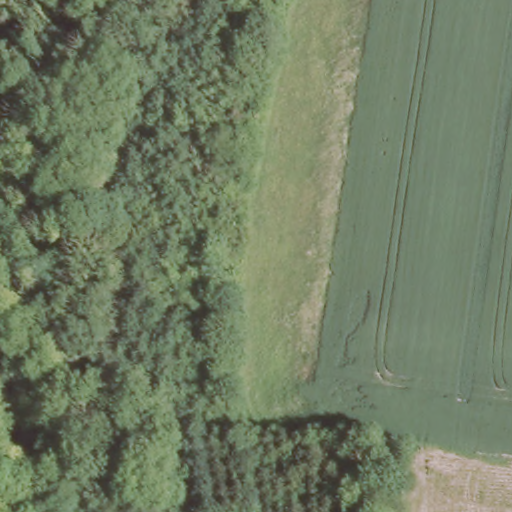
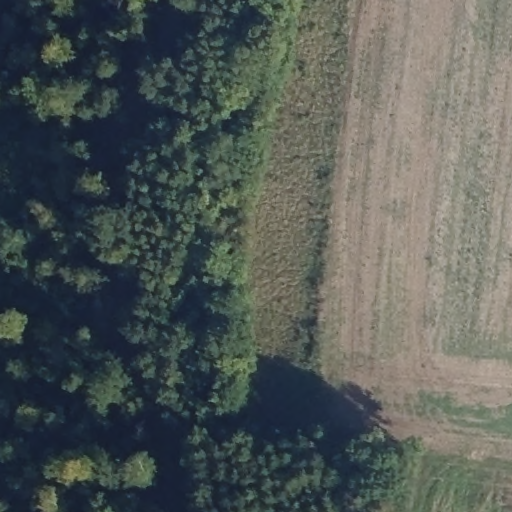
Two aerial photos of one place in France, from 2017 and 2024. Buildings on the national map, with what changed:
[]

